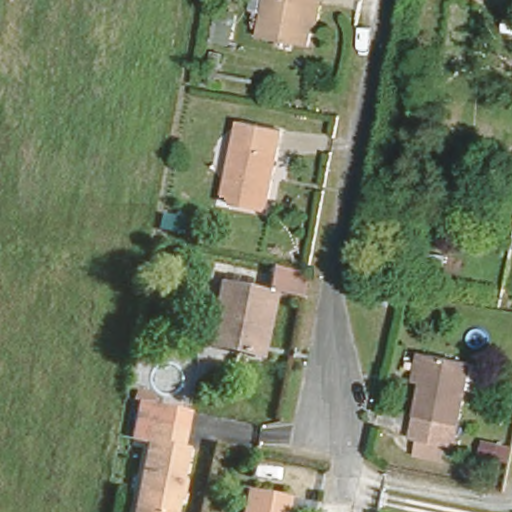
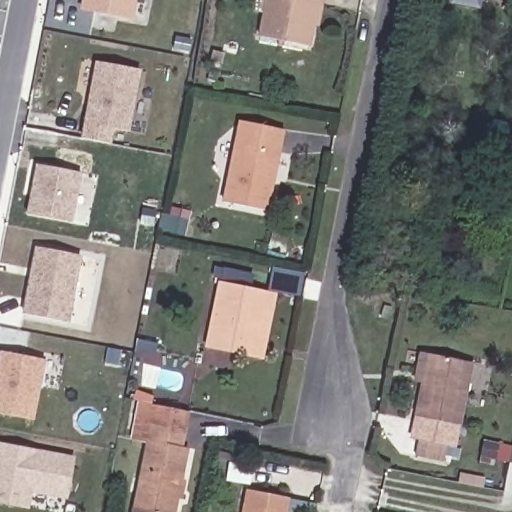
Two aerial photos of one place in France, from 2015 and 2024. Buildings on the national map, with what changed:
new [(138,0),(135,17),(83,9),(85,0),(138,0)]
unchanged [(261,0),(318,0),(314,22),(309,21),(305,40),(256,32),(261,0)]
new [(99,63),(141,70),(129,132),(114,129),(111,144),(84,139),(99,63)]
unchanged [(242,118),(284,127),(268,206),(225,197),(242,118)]
new [(39,165),(82,173),(72,223),(29,215),(39,165)]
new [(38,248),(81,255),(68,323),(25,314),(38,248)]
unchanged [(251,351),(203,341),(216,279),(270,291),(267,308),(257,352),(251,351)]
new [(3,350),(46,358),(36,416),(0,409),(0,367),(3,350)]
unchanged [(456,445),(412,436),(423,384),(413,382),(419,352),(429,354),(472,362),(456,445)]
unchanged [(183,402),(176,437),(182,438),(166,512),(127,512),(145,432),(128,429),(136,392),(183,402)]
new [(2,441),(76,457),(69,497),(34,489),(31,505),(0,500),(0,451),(2,441)]
unchanged [(248,489),(290,498),(287,512),(243,512),(248,489)]

